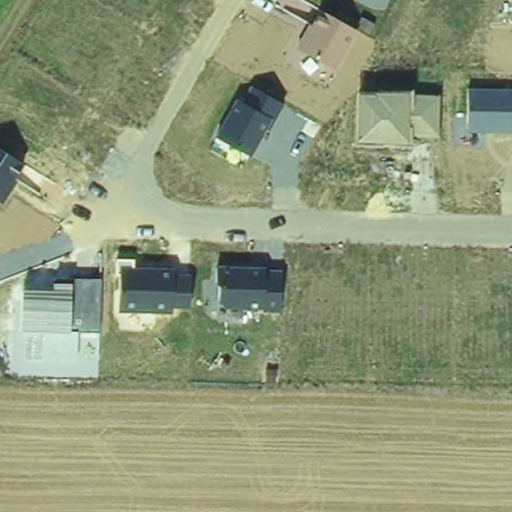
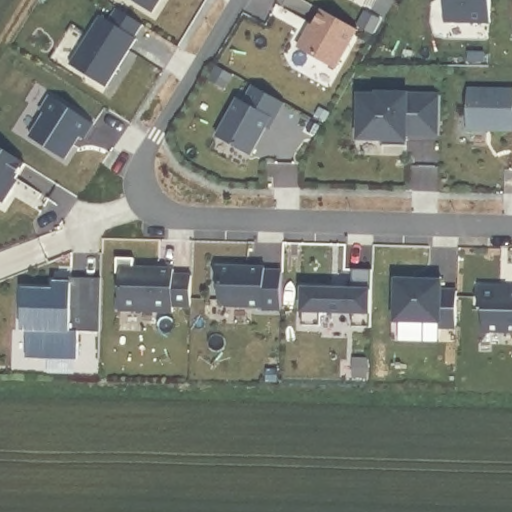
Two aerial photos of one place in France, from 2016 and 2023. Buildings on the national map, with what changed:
new [(151,10),(136,0),(157,0),(151,10)]
new [(491,21),(444,20),(445,0),(491,0),(491,21)]
new [(142,22),(134,35),(136,36),(105,84),(70,61),(100,13),(109,19),(117,6),(142,22)]
unchanged [(336,68),(298,48),(321,9),(357,30),(336,68)]
unchanged [(270,131),(265,129),(250,155),(216,137),(236,96),(244,100),(250,87),(285,103),(270,131)]
unchanged [(468,130),(467,88),(512,88),(512,130),(468,130)]
unchanged [(439,136),(412,136),(412,145),(353,145),(355,92),(411,91),(412,96),(438,95),(439,136)]
new [(94,121),(85,135),(80,132),(66,156),(32,134),(47,111),(42,108),(51,94),(94,121)]
unchanged [(0,203),(0,147),(26,164),(2,205),(0,203)]
unchanged [(192,306),(174,305),(173,313),(119,311),(120,276),(116,276),(116,259),(136,259),(136,267),(172,268),(172,276),(190,275),(192,306)]
unchanged [(281,310),(219,307),(219,266),(283,268),(281,310)]
new [(352,287),(352,267),(371,268),(370,324),(351,324),(352,310),(320,310),(319,323),(301,323),(302,286),(352,287)]
new [(422,278),(422,274),(440,275),(439,288),(456,288),(455,324),(438,324),(438,319),(395,317),(396,278),(422,278)]
unchanged [(100,331),(78,331),(77,360),(27,359),(27,331),(20,331),(22,288),(52,290),(52,281),(75,282),(75,277),(100,278),(100,331)]
new [(506,284),(507,289),(512,289),(512,328),(482,328),(482,306),(478,307),(478,284),(506,284)]

